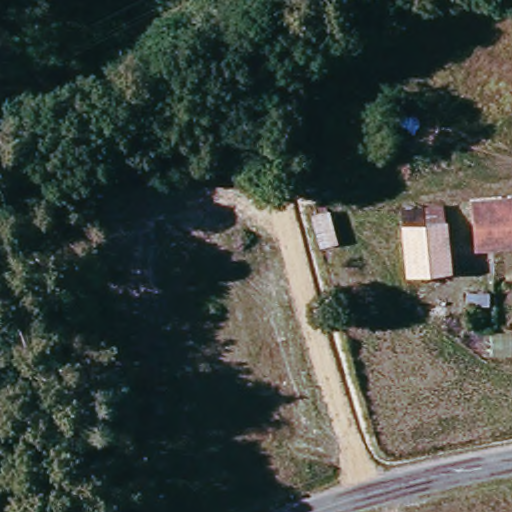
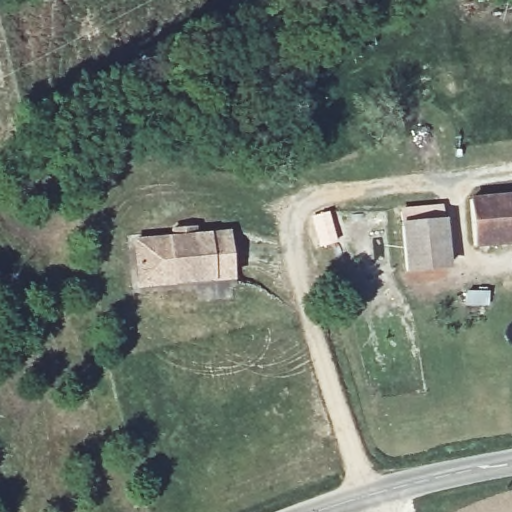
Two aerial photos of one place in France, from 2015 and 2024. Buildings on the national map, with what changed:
unchanged [(512,243),(485,245),(480,198),(512,194),(512,243)]
unchanged [(442,208),(445,263),(404,266),(401,210),(442,208)]
unchanged [(319,262),(311,232),(325,229),(332,258),(319,262)]
new [(130,239),(229,230),(234,280),(135,290),(130,239)]
unchanged [(491,315),(479,315),(479,303),(491,302),(491,315)]

